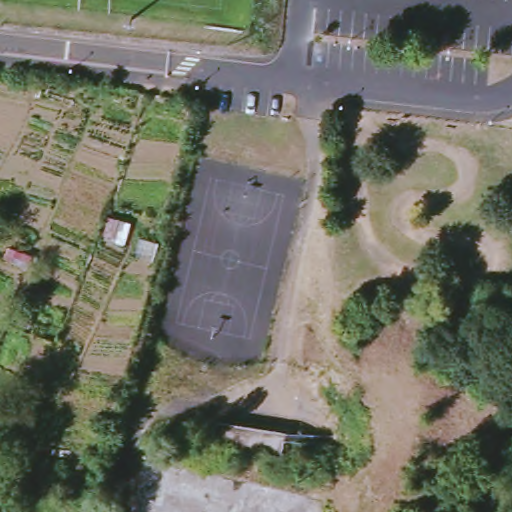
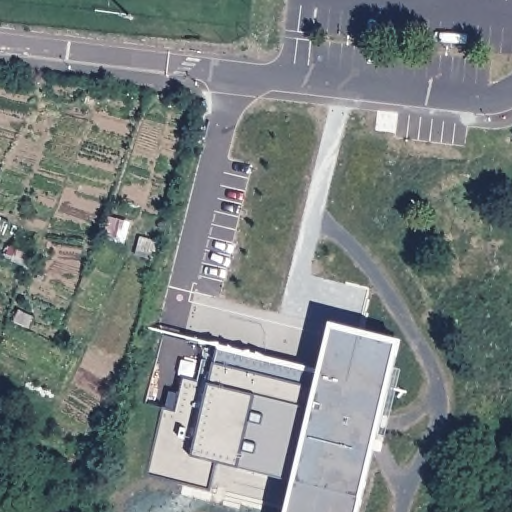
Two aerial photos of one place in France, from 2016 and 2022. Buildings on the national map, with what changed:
new [(401,340),(359,512),(284,512),(291,482),(217,462),(211,488),(147,472),(164,408),(168,392),(181,395),(184,378),(198,381),(205,348),(216,352),(220,346),(320,370),(331,322),(401,340)]
demolished [(252,428),(252,431),(258,432),(258,428),(277,430),(275,449),(234,445),(236,426),(252,428)]

